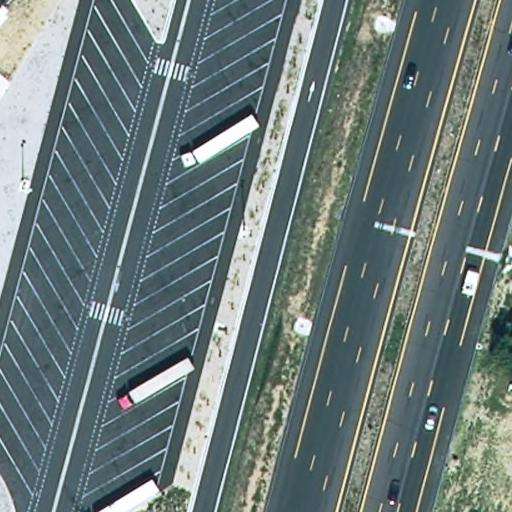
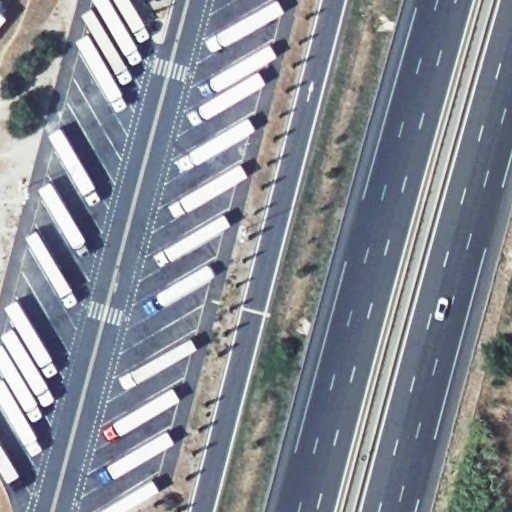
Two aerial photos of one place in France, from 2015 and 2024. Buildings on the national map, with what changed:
unchanged [(0,25),(0,11),(7,16),(0,25)]

